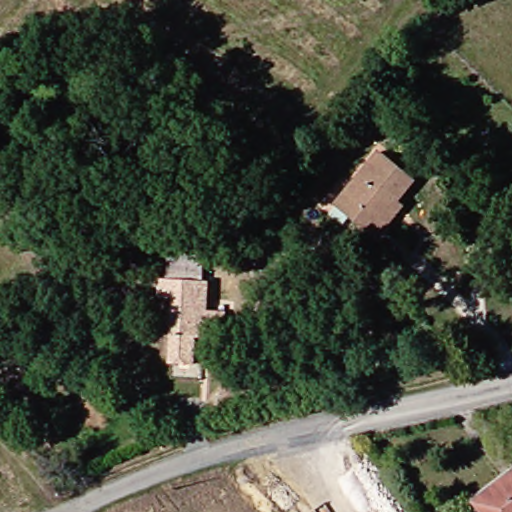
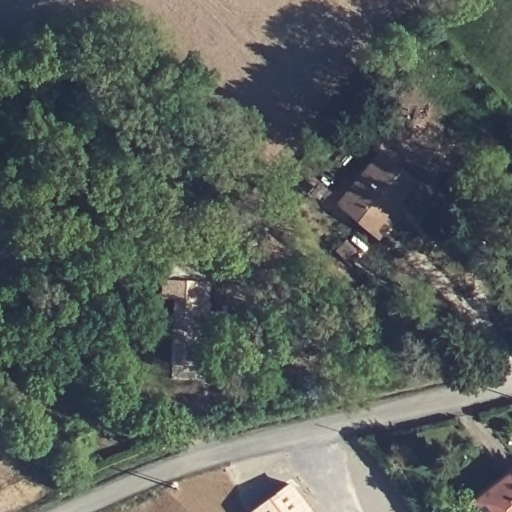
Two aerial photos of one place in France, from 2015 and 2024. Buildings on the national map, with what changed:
unchanged [(393,227),(386,237),(346,205),(382,154),(416,181),(405,198),(411,205),(393,227)]
unchanged [(505,260),(481,239),(497,218),(512,229),(512,250),(505,260)]
unchanged [(172,280),(174,252),(208,255),(208,283),(213,283),(212,365),(173,364),(174,300),(165,301),(165,281),(172,280)]
unchanged [(512,478),(512,512),(482,512),(477,504),(485,498),(512,478)]
new [(314,512),(252,512),(291,481),(314,512)]

